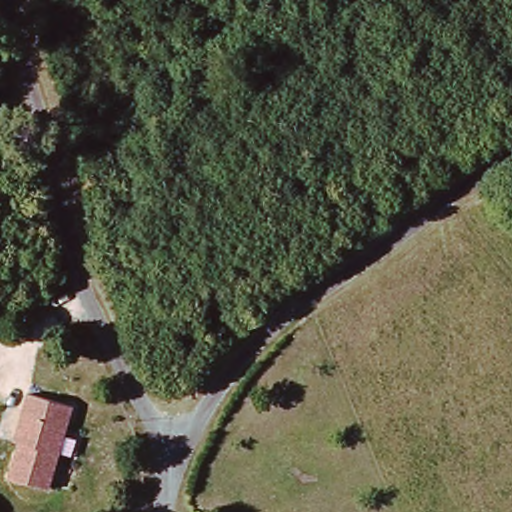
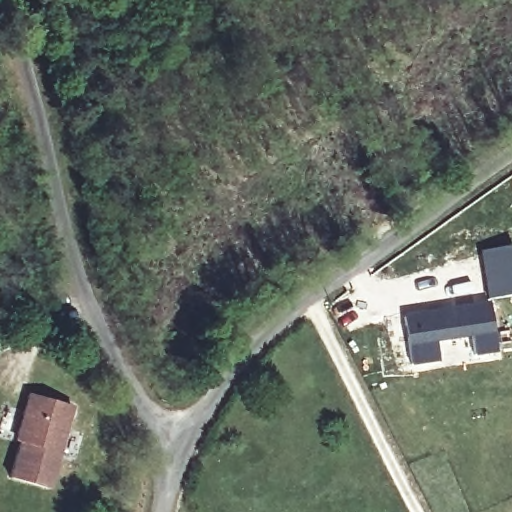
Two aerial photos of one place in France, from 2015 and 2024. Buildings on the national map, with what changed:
new [(489,301),(481,253),(512,248),(512,297),(489,301)]
new [(475,358),(472,339),(437,344),(440,364),(412,368),(405,317),(490,304),(497,355),(475,358)]
unchanged [(24,433),(39,394),(81,411),(49,491),(12,472),(28,435),(24,433)]

